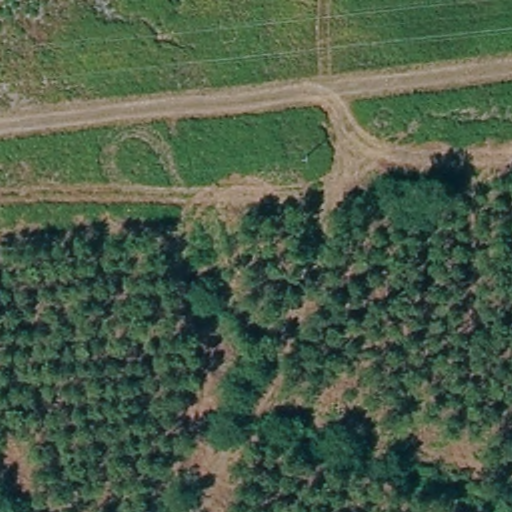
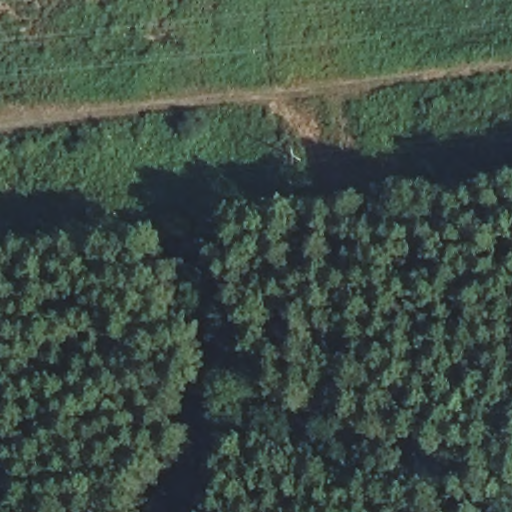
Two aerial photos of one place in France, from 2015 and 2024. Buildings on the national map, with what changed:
unchanged [(395,181),(366,194),(357,170),(387,158),(395,181)]

